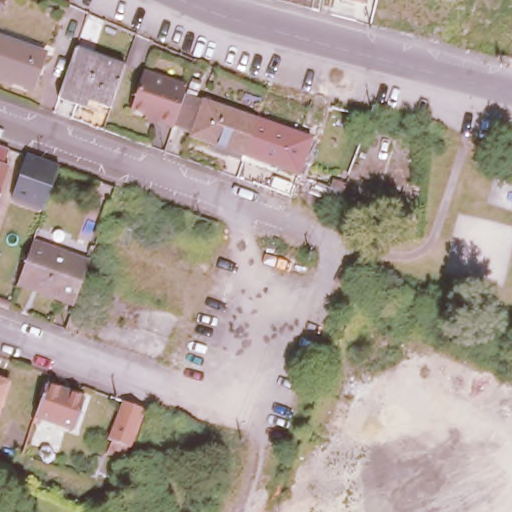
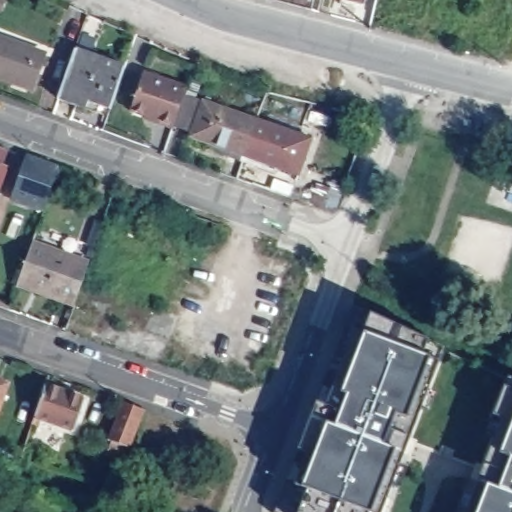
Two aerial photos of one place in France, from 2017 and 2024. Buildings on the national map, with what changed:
unchanged [(367,0),(365,5),(346,0),(367,0)]
demolished [(447,0),(440,27),(380,8),(382,0),(447,0)]
unchanged [(43,50),(32,84),(0,73),(0,35),(43,50)]
unchanged [(87,106),(59,97),(75,51),(125,68),(112,109),(89,100),(87,106)]
unchanged [(159,61),(194,70),(190,84),(155,76),(159,61)]
unchanged [(173,130),(144,122),(153,83),(182,91),(173,130)]
unchanged [(230,156),(232,151),(192,137),(205,101),(261,121),(246,162),(230,156)]
unchanged [(314,139),(302,177),(262,163),(261,167),(246,162),(261,121),(314,139)]
unchanged [(12,150),(7,166),(12,168),(3,195),(0,204),(0,145),(12,150)]
new [(42,210),(10,199),(25,156),(57,168),(42,210)]
demolished [(42,210),(25,203),(34,176),(39,161),(57,168),(42,210)]
demolished [(191,229),(194,219),(212,226),(210,236),(191,229)]
unchanged [(57,300),(34,291),(33,294),(16,288),(32,244),(87,263),(82,279),(72,307),(56,302),(57,300)]
new [(437,347),(376,512),(279,512),(269,508),(345,305),(437,347)]
new [(487,414),(501,375),(512,381),(512,436),(510,512),(459,512),(494,417),(487,414)]
unchanged [(13,380),(0,414),(0,376),(13,380)]
unchanged [(72,429),(32,415),(43,385),(82,399),(72,429)]
unchanged [(134,442),(115,436),(127,402),(146,409),(134,442)]
new [(512,436),(512,512),(510,512),(512,436)]

